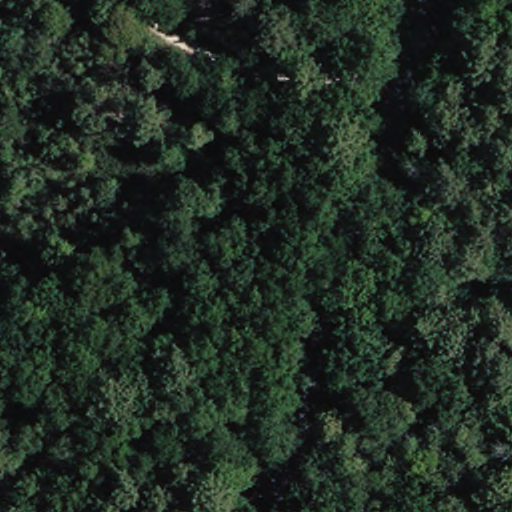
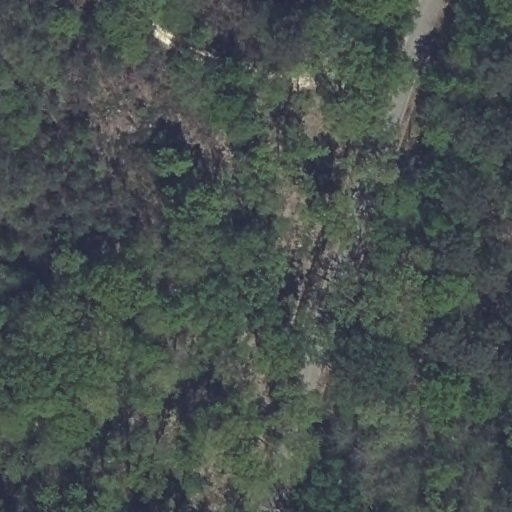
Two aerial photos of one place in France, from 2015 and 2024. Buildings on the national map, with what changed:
[]

